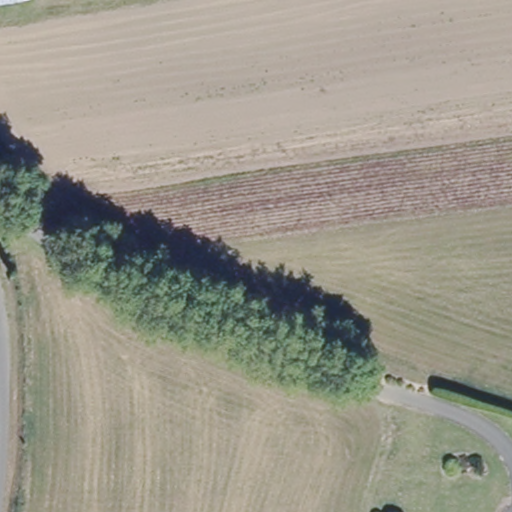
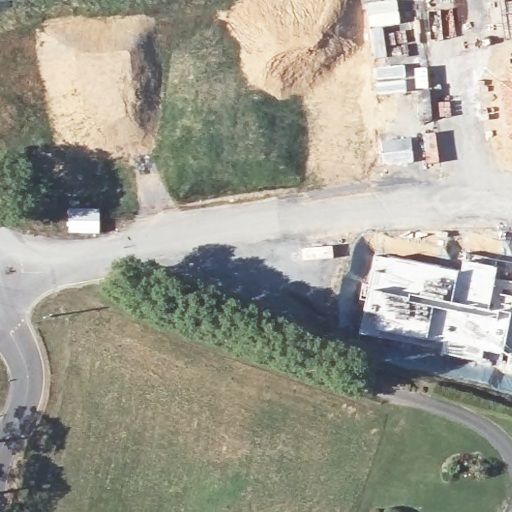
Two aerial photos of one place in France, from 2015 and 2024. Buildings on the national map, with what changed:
new [(507,66),(512,65),(512,114),(504,82),(508,80),(507,66)]
new [(512,127),(512,129),(511,127),(512,127)]
new [(410,140),(412,161),(385,162),(382,141),(410,140)]
new [(463,252),(512,261),(512,347),(502,346),(501,355),(483,351),(480,362),(441,354),(442,347),(361,334),(375,255),(458,272),(463,252)]

